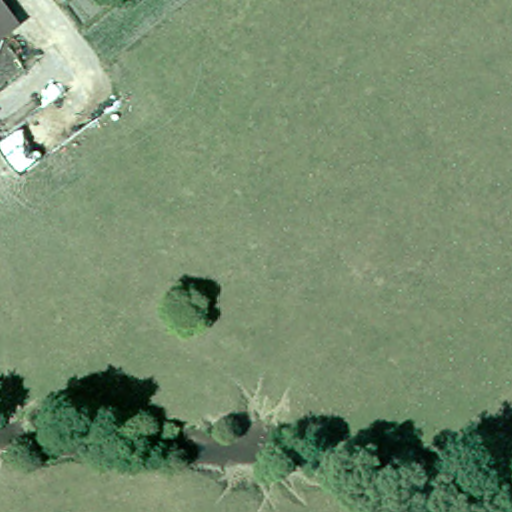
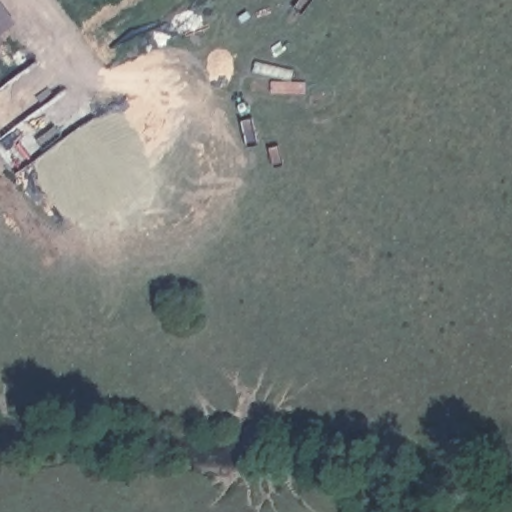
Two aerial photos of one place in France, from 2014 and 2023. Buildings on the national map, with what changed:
unchanged [(0,23),(0,12),(5,19),(0,23)]

